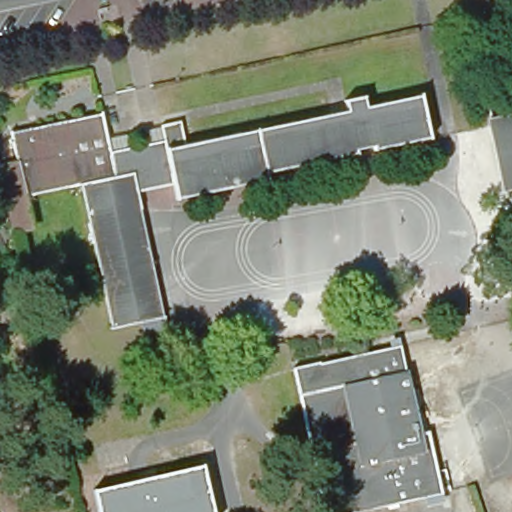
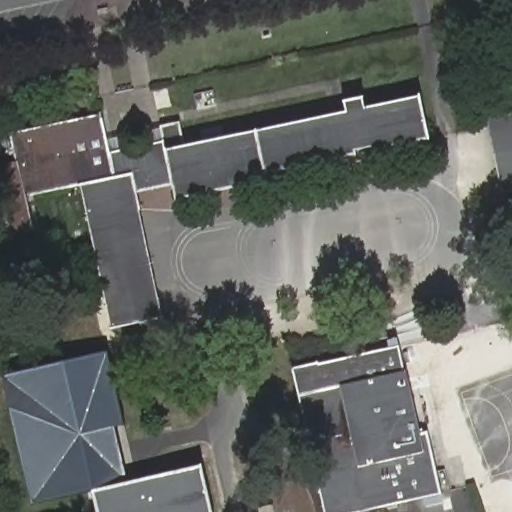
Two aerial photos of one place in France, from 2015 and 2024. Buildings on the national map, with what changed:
unchanged [(164,145),(341,102),(338,92),(358,87),(360,97),(415,84),(426,127),(370,141),(369,135),(350,140),(351,145),(263,167),(264,173),(173,196),(169,180),(133,190),(135,197),(84,210),(77,184),(20,198),(12,159),(5,134),(95,111),(103,143),(157,130),(158,135),(161,135),(164,145)]
unchanged [(503,190),(486,123),(512,117),(512,188),(503,190)]
unchanged [(30,231),(11,235),(0,186),(0,162),(12,159),(20,198),(30,231)]
unchanged [(160,293),(108,307),(84,210),(135,197),(160,293)]
unchanged [(165,313),(112,326),(108,307),(160,293),(165,313)]
unchanged [(377,351),(396,346),(404,375),(419,433),(425,431),(441,492),(442,495),(377,512),(324,512),(312,464),(308,447),(289,374),(377,351)]
new [(107,351),(123,423),(116,425),(129,480),(94,490),(34,502),(3,375),(107,351)]
unchanged [(129,480),(200,461),(213,512),(99,512),(94,490),(129,480)]

